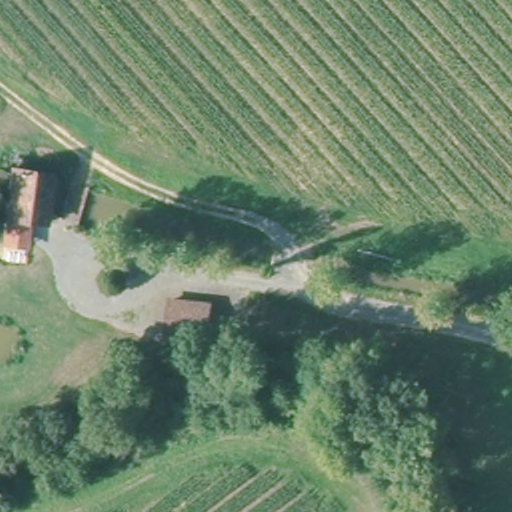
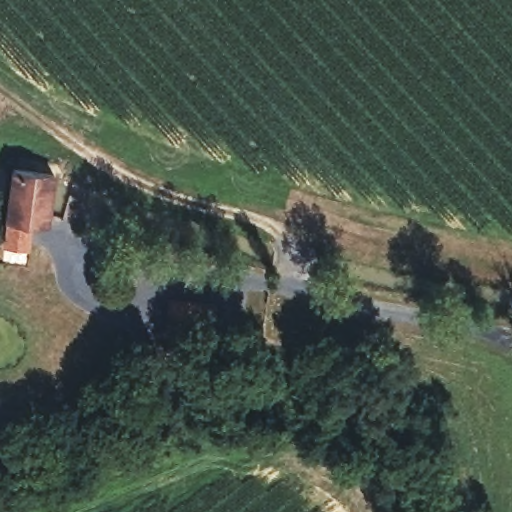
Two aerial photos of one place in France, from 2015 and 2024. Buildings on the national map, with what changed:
unchanged [(1,242),(5,218),(8,186),(12,163),(21,165),(50,169),(59,170),(57,181),(51,220),(43,218),(27,217),(23,246),(1,242)]
unchanged [(210,308),(206,342),(161,337),(168,304),(210,308)]

